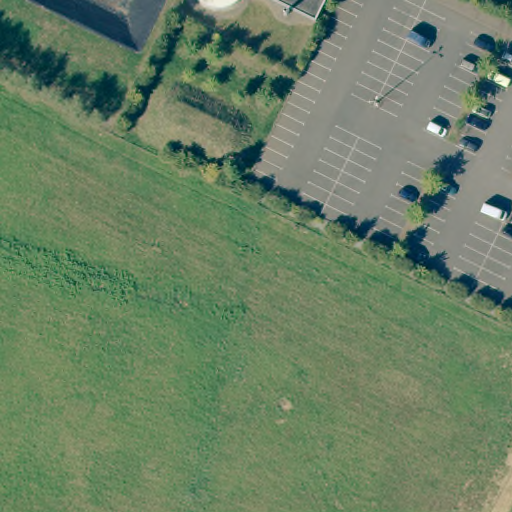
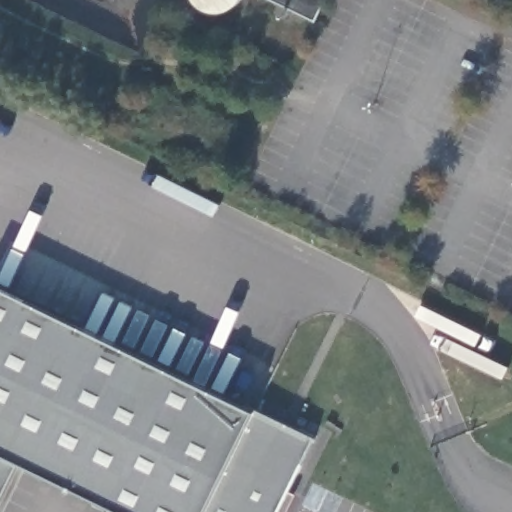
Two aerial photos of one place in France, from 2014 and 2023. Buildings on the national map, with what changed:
new [(315,441),(289,491),(296,495),(288,512),(109,512),(111,508),(27,467),(5,512),(0,512),(0,287),(255,411),(315,441)]

